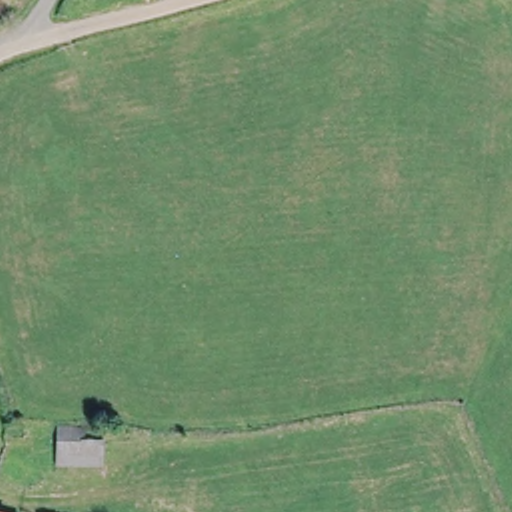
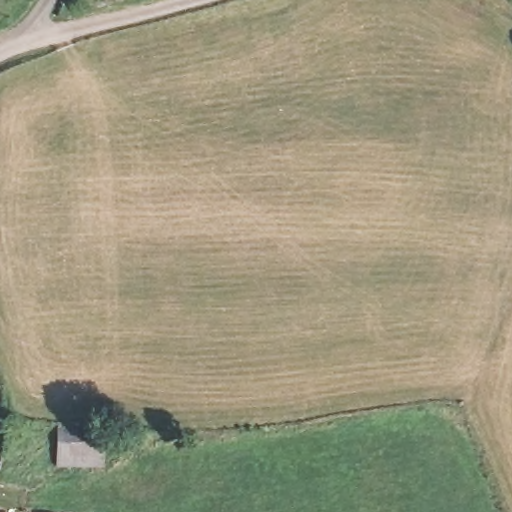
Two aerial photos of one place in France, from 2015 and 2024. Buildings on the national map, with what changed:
unchanged [(94,457),(67,458),(67,440),(93,439),(94,448),(94,457)]

